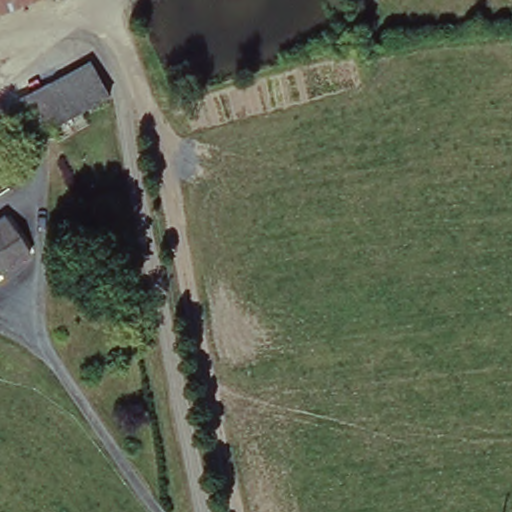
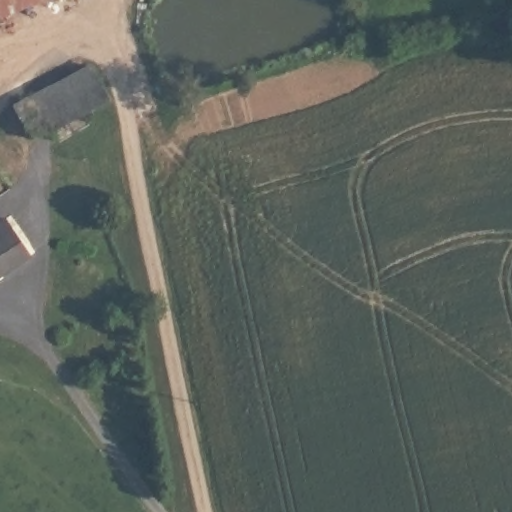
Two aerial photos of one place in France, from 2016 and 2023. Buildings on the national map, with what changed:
unchanged [(6,12),(0,0),(33,0),(6,12)]
unchanged [(6,12),(0,16),(0,0),(6,12)]
unchanged [(117,101),(57,127),(38,134),(22,107),(65,84),(90,71),(100,65),(117,101)]
unchanged [(0,280),(0,239),(2,237),(0,234),(0,226),(8,221),(34,259),(0,280)]

